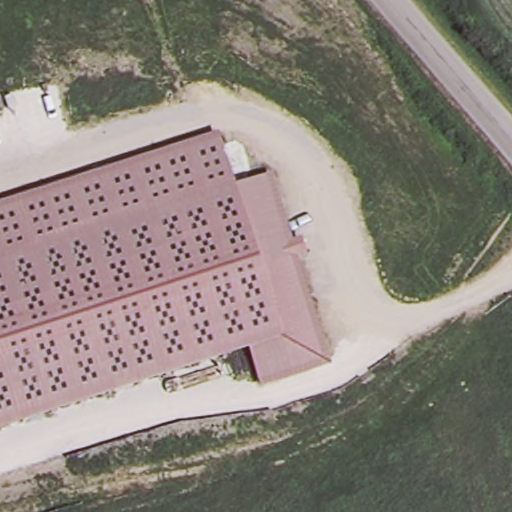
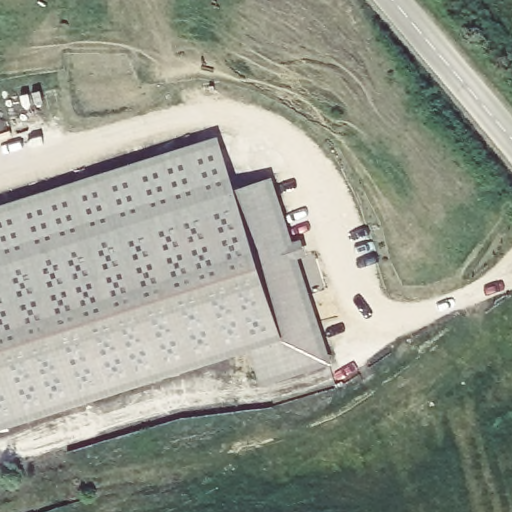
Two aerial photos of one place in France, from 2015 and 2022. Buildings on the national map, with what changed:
unchanged [(218,135),(235,187),(273,175),(333,363),(262,385),(250,350),(0,428),(0,203),(218,135)]

